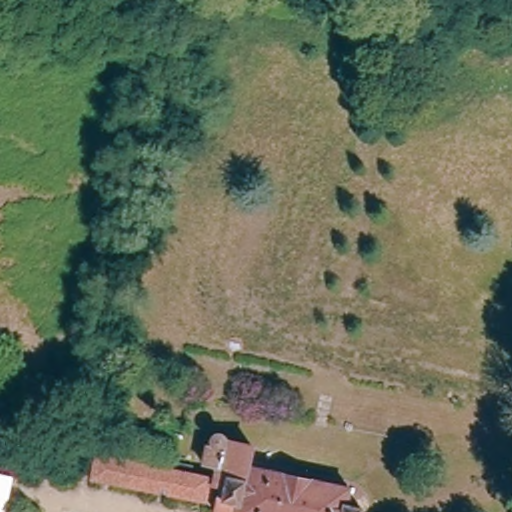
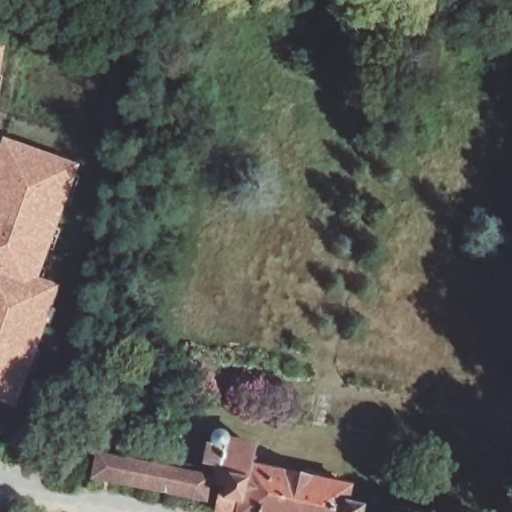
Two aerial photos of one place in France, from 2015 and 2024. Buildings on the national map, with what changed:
new [(0,62),(0,48),(2,49),(0,62)]
new [(70,174),(68,179),(78,182),(68,208),(59,205),(47,234),(56,237),(49,258),(39,255),(32,274),(41,278),(35,293),(47,297),(41,315),(50,318),(45,333),(35,330),(25,357),(35,360),(27,379),(19,375),(6,408),(0,406),(0,161),(5,149),(70,174)]
unchanged [(220,498),(223,500),(226,486),(215,482),(218,467),(202,465),(205,455),(210,438),(215,434),(219,433),(224,435),(228,440),(252,445),(249,465),(349,486),(345,505),(361,508),(361,512),(217,512),(220,498)]
unchanged [(96,453),(171,469),(173,461),(194,465),(192,473),(210,477),(205,501),(91,477),(96,453)]

